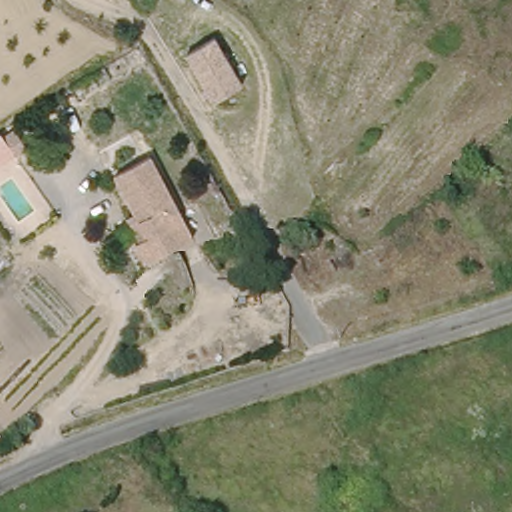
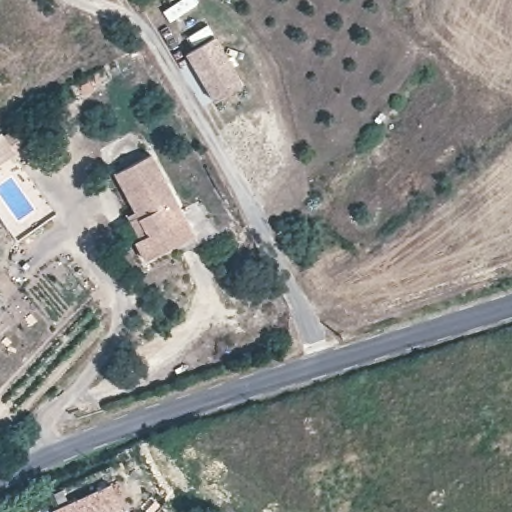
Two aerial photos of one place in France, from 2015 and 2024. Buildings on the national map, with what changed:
unchanged [(217,40),(245,88),(217,104),(189,56),(217,40)]
unchanged [(0,166),(0,134),(2,133),(4,136),(16,126),(29,146),(0,166)]
unchanged [(122,171),(154,150),(200,230),(157,257),(145,238),(147,237),(135,214),(143,209),(122,171)]
new [(52,511),(111,485),(123,512),(52,512),(52,511)]

